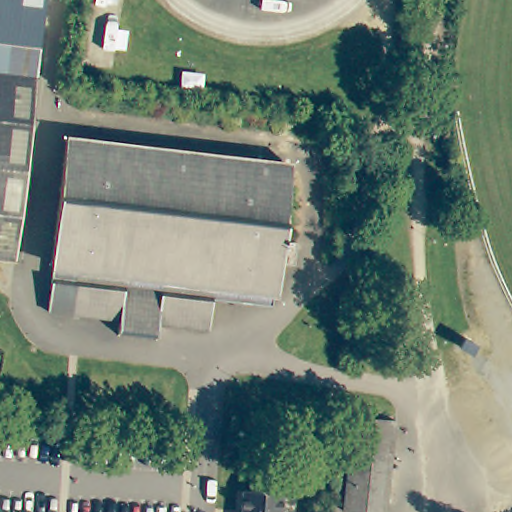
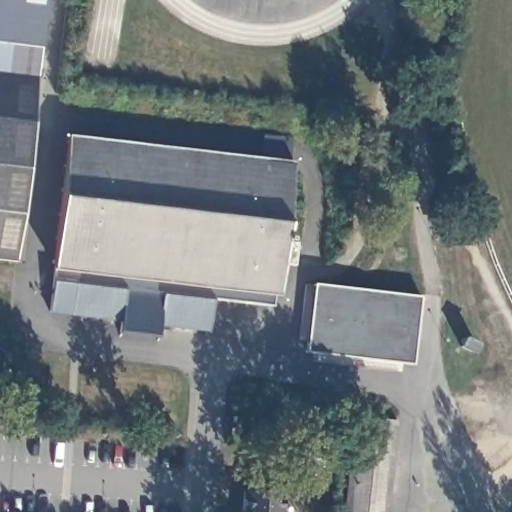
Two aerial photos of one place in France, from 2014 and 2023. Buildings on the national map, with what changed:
unchanged [(0,259),(0,0),(48,0),(44,30),(16,261),(0,259)]
unchanged [(291,161),(282,236),(299,238),(296,261),(280,259),(274,302),(214,295),(209,328),(161,322),(160,333),(121,329),(122,316),(71,310),(49,307),(54,258),(68,137),(291,161)]
new [(412,364),(306,353),(313,284),(420,296),(412,364)]
unchanged [(387,512),(345,512),(355,417),(397,421),(387,512)]
unchanged [(284,512),(243,512),(244,490),(285,492),(284,512)]

